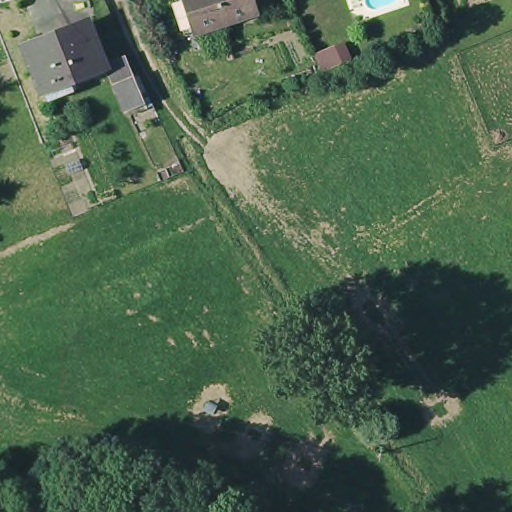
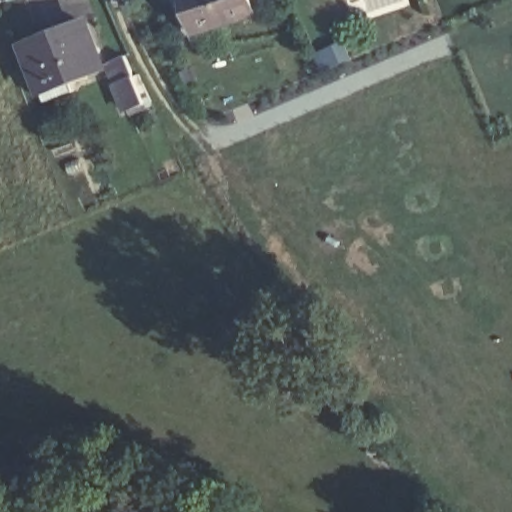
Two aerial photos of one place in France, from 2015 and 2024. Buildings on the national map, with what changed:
unchanged [(206,30),(205,27),(192,32),(181,0),(263,0),(266,9),(206,30)]
unchanged [(57,22),(89,10),(105,54),(72,66),(76,77),(50,87),(31,39),(60,27),(57,22)]
unchanged [(136,67),(146,93),(130,99),(120,72),(136,67)]

